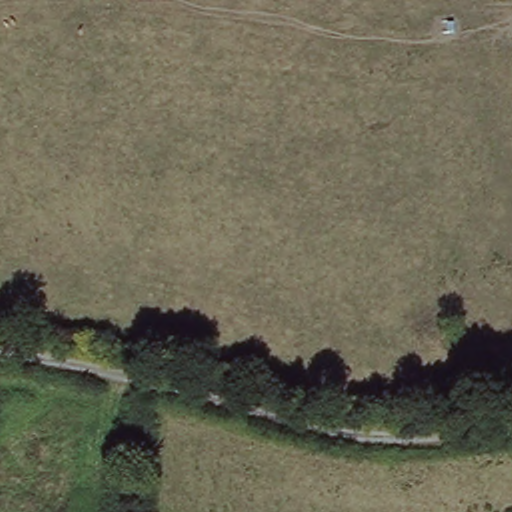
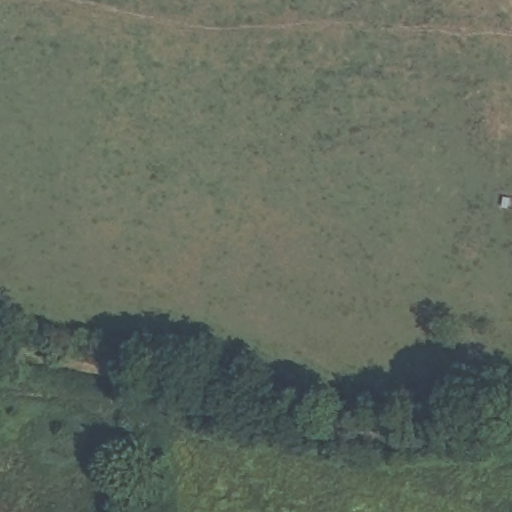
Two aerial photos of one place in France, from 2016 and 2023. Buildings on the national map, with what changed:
[]

